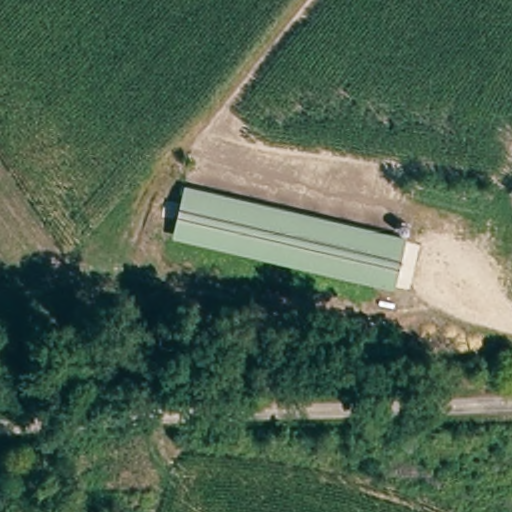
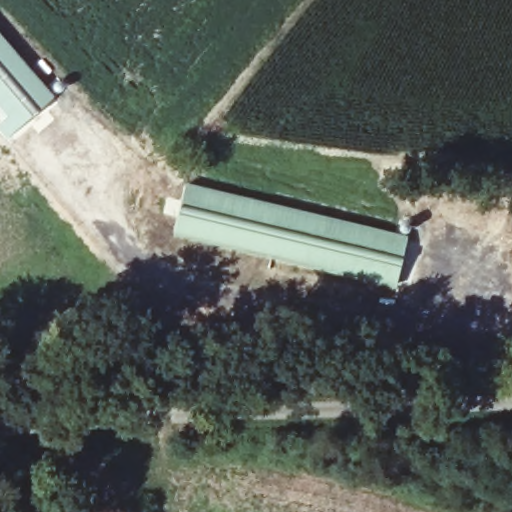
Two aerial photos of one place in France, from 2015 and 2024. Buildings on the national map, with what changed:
new [(0,121),(6,115),(0,108),(0,34),(54,96),(5,139),(0,134),(0,121)]
unchanged [(180,180),(405,239),(393,283),(169,225),(180,180)]

